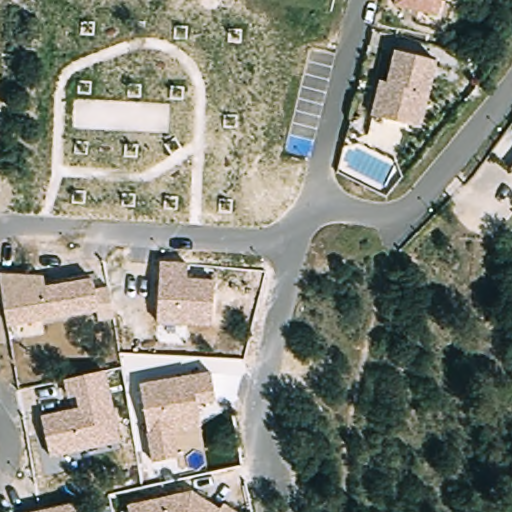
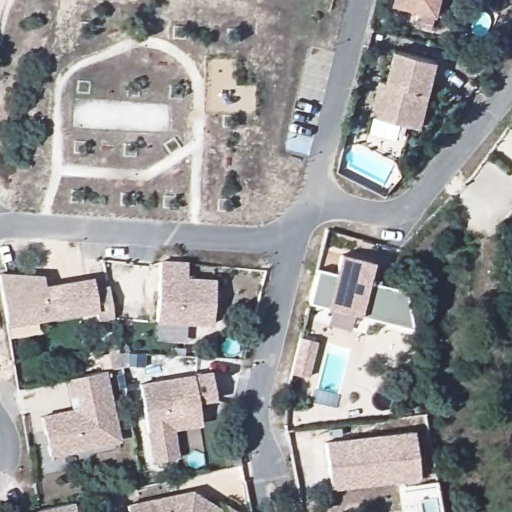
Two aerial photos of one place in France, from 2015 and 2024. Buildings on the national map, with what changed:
unchanged [(397,5),(398,0),(443,0),(439,15),(397,5)]
unchanged [(415,127),(375,117),(383,82),(391,84),(398,52),(440,62),(430,105),(424,129),(415,127)]
new [(314,274),(334,279),(339,259),(370,266),(365,286),(408,297),(416,335),(306,308),(314,274)]
unchanged [(159,320),(163,263),(187,262),(187,276),(215,280),(213,325),(159,320)]
unchanged [(9,328),(0,273),(45,277),(46,285),(93,278),(94,286),(110,286),(115,320),(99,325),(97,314),(9,328)]
new [(297,341),(314,345),(305,381),(289,377),(297,341)]
unchanged [(119,443),(52,458),(42,415),(79,407),(76,397),(68,400),(65,381),(106,371),(119,443)]
unchanged [(199,408),(200,426),(178,431),(182,455),(154,461),(142,384),(210,372),(217,401),(199,408)]
new [(412,436),(418,483),(395,485),(332,491),(327,445),(412,436)]
unchanged [(129,505),(192,491),(219,509),(222,504),(238,512),(130,512),(129,505)]
unchanged [(79,512),(31,512),(78,504),(79,512)]

